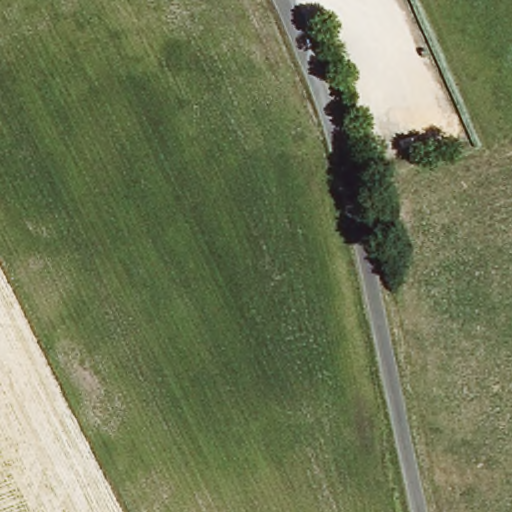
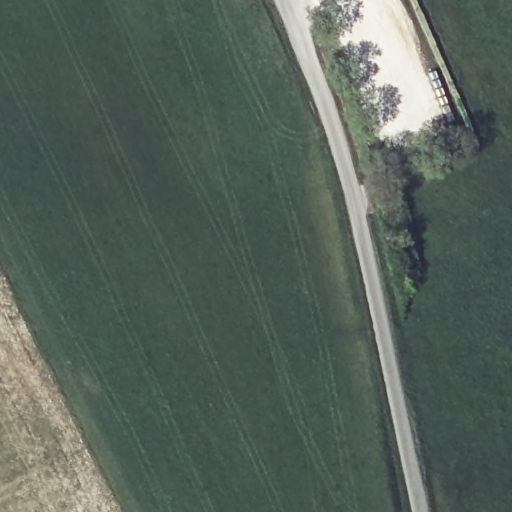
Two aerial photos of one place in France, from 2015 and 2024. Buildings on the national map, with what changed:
[]

